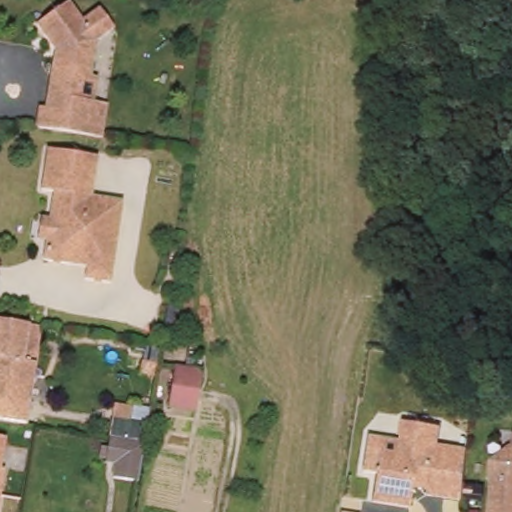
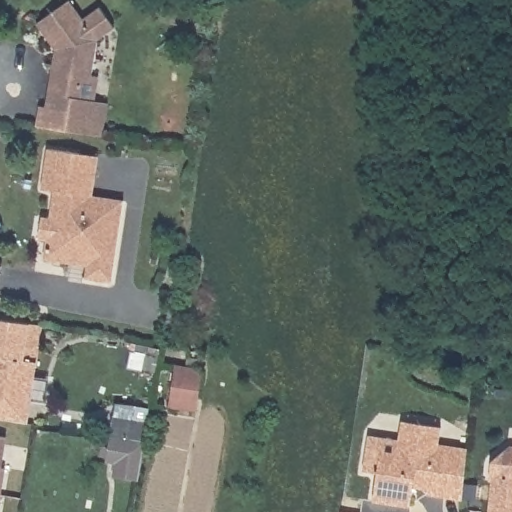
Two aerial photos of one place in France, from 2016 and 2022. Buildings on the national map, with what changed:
unchanged [(81,131),(25,118),(30,98),(41,101),(44,88),(54,43),(36,16),(60,0),(74,0),(83,14),(100,2),(114,23),(97,36),(89,71),(96,73),(90,98),(98,101),(90,134),(81,131)]
unchanged [(111,283),(86,279),(88,267),(44,260),(46,240),(39,239),(42,217),(51,218),(55,192),(43,190),(49,149),(99,160),(93,196),(124,201),(111,283)]
unchanged [(0,394),(0,317),(21,321),(41,324),(32,381),(29,399),(20,398),(0,394)]
unchanged [(195,407),(172,403),(180,360),(203,365),(195,407)]
unchanged [(115,459),(104,458),(108,433),(111,413),(131,416),(146,418),(143,438),(137,478),(112,474),(115,459)]
unchanged [(467,461),(463,496),(428,493),(429,488),(413,486),(411,506),(374,503),(376,475),(362,474),(366,439),(380,441),(396,442),(398,424),(437,427),(436,445),(468,448),(467,461)]
unchanged [(0,460),(0,434),(5,435),(0,460)]
unchanged [(492,477),(488,476),(489,458),(491,440),(509,442),(512,442),(512,512),(488,512),(492,477)]
unchanged [(0,482),(0,465),(3,466),(0,482)]

